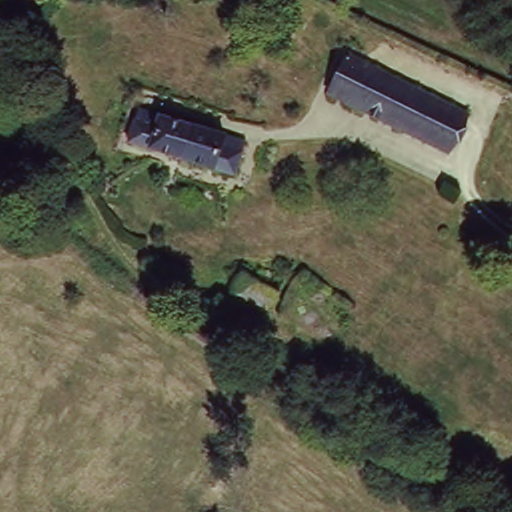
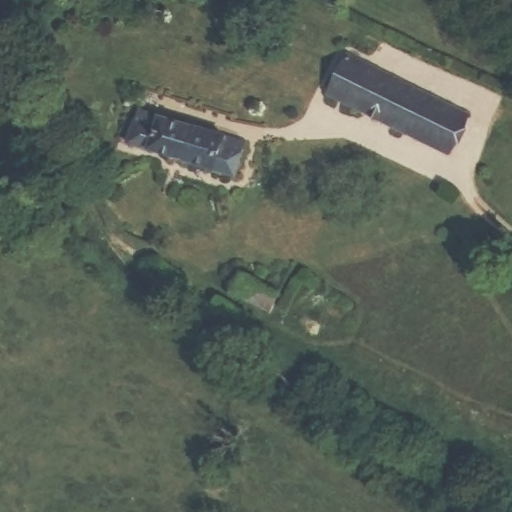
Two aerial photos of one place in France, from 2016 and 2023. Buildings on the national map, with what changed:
unchanged [(442,153),(322,98),(342,57),(372,71),(365,84),(453,129),(442,153)]
unchanged [(365,84),(372,71),(460,113),(453,129),(365,84)]
unchanged [(146,149),(155,121),(226,139),(225,145),(235,148),(230,172),(146,149)]
unchanged [(237,273),(277,288),(270,312),(230,294),(237,273)]

